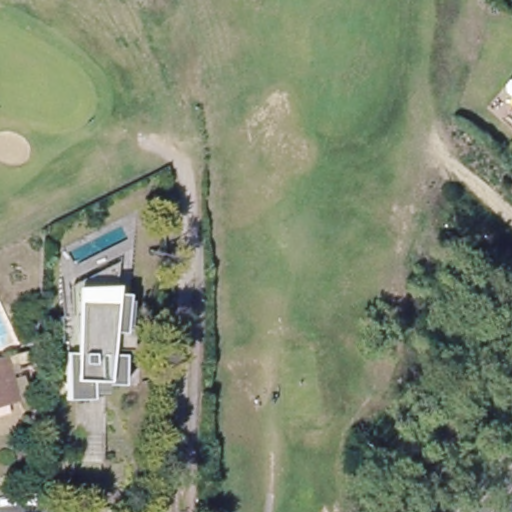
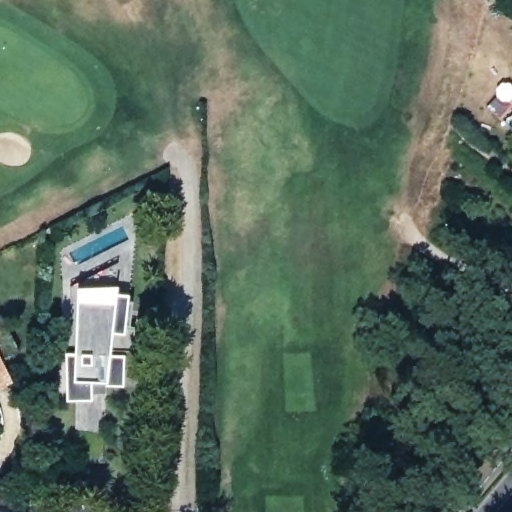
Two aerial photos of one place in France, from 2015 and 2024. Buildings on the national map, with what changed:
unchanged [(63,447),(63,416),(53,417),(50,369),(51,332),(53,332),(54,315),(54,302),(103,280),(99,309),(114,311),(113,317),(117,317),(113,351),(94,348),(92,367),(105,367),(107,397),(90,398),(91,407),(91,447),(92,477),(64,477),(63,447)]
unchanged [(0,363),(7,402),(0,404),(0,364),(0,363)]

